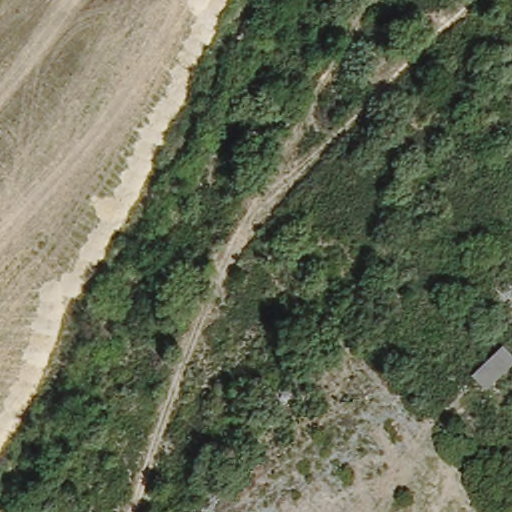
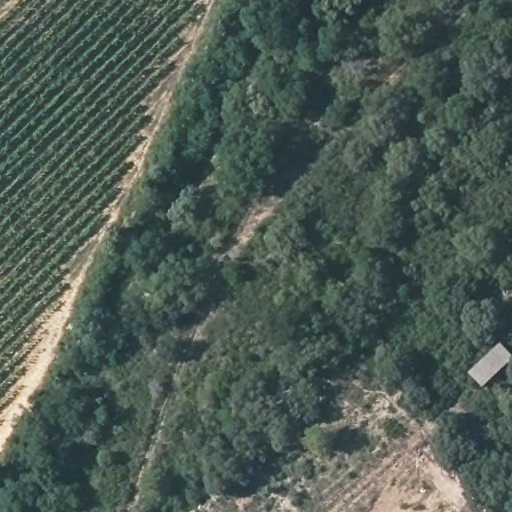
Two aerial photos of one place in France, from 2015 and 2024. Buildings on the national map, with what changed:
unchanged [(480,397),(469,377),(499,343),(512,355),(512,369),(480,397)]

